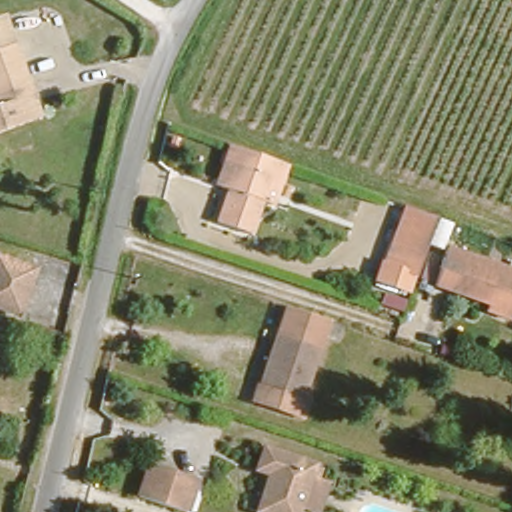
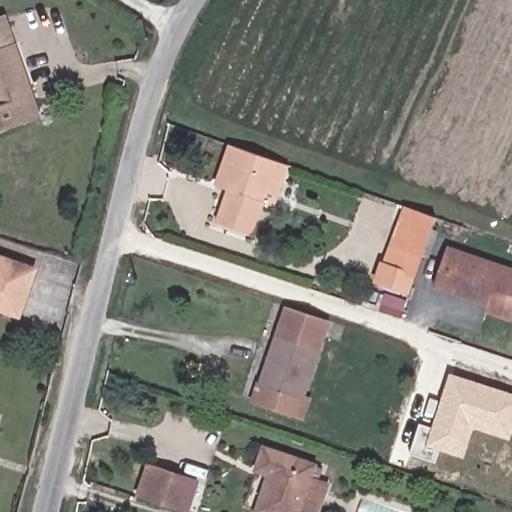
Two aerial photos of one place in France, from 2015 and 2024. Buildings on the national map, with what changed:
unchanged [(33,88),(28,89),(36,115),(0,129),(0,11),(5,9),(33,88)]
unchanged [(287,160),(274,197),(264,193),(251,230),(217,218),(226,191),(231,193),(234,186),(215,180),(229,140),(287,160)]
unchanged [(422,258),(391,246),(404,206),(436,217),(422,258)]
unchanged [(433,281),(446,242),(512,265),(512,312),(511,316),(484,307),(487,300),(433,281)]
unchanged [(19,313),(0,307),(0,260),(34,271),(19,313)]
unchanged [(325,320),(329,321),(303,398),(309,400),(304,419),(254,402),(285,306),(325,320)]
new [(511,440),(474,428),(464,458),(439,450),(435,461),(410,453),(419,423),(432,427),(449,372),(512,392),(512,437),(511,440)]
unchanged [(259,444),(309,461),(291,512),(266,512),(252,507),(264,470),(252,465),(259,444)]
unchanged [(149,461),(197,477),(187,507),(158,497),(139,491),(149,461)]

